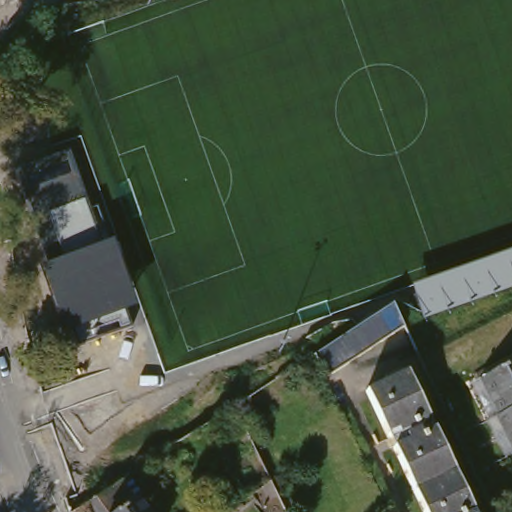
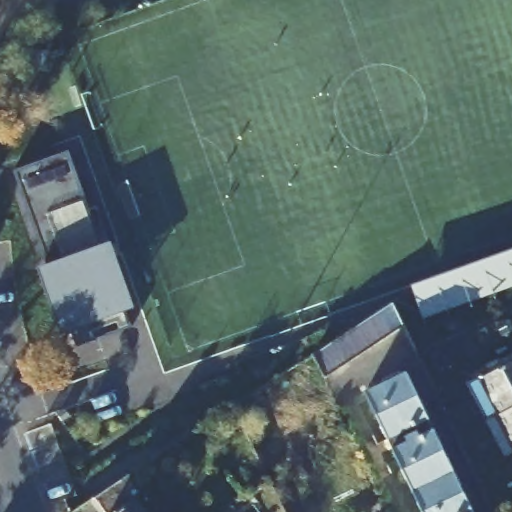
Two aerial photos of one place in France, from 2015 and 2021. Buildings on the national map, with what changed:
unchanged [(71,350),(62,331),(39,268),(48,264),(16,171),(67,152),(103,246),(112,242),(136,309),(125,313),(129,328),(71,350)]
unchanged [(423,319),(412,287),(512,252),(512,287),(423,319)]
unchanged [(407,300),(409,303),(411,308),(419,325),(339,375),(329,355),(328,352),(407,300)]
unchanged [(502,415),(506,414),(487,378),(512,365),(512,434),(502,415)]
unchanged [(417,368),(486,512),(435,512),(376,388),(417,368)]
unchanged [(135,493),(142,489),(155,507),(158,512),(110,512),(109,510),(134,495),(135,493)]
unchanged [(498,501),(503,512),(493,512),(490,505),(498,501)]

